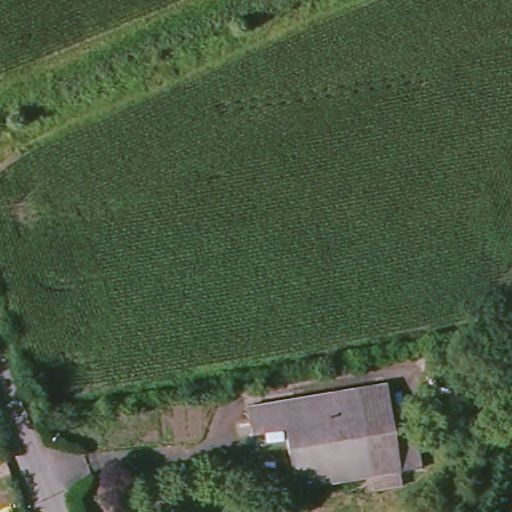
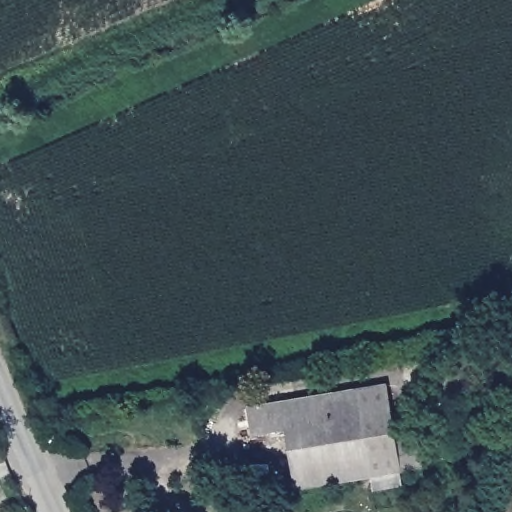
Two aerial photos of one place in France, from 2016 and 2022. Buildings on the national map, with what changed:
unchanged [(289,438),(255,445),(250,417),(389,393),(403,481),(299,498),(289,438)]

